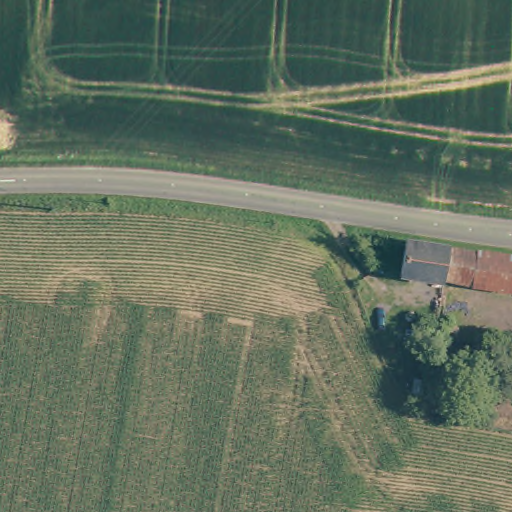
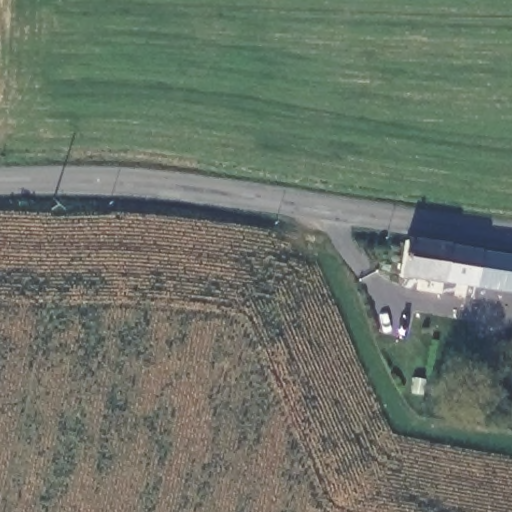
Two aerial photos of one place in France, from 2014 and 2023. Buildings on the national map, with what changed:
unchanged [(440,285),(399,277),(404,242),(507,261),(512,261),(512,293),(442,280),(440,285)]

